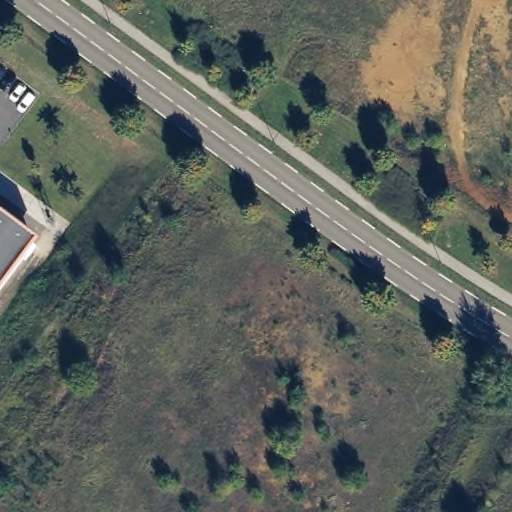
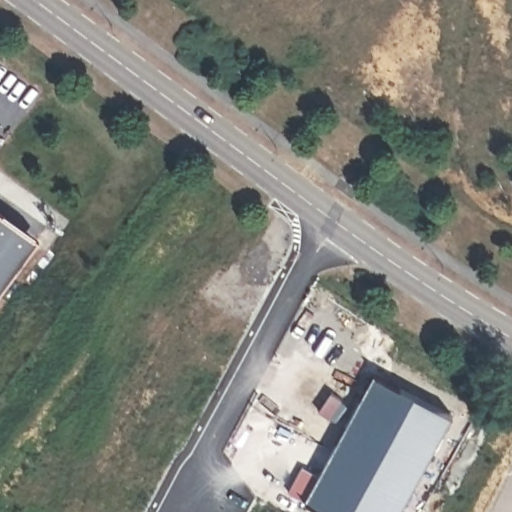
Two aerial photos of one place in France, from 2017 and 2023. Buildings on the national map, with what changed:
unchanged [(0,289),(0,218),(34,243),(0,289)]
new [(295,468),(315,479),(372,373),(452,417),(399,512),(325,512),(287,491),(295,468)]

